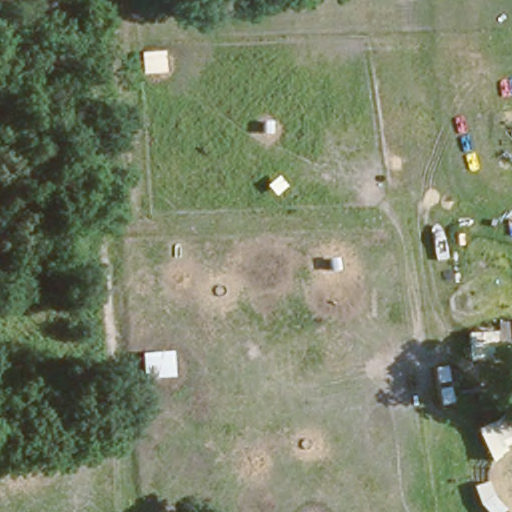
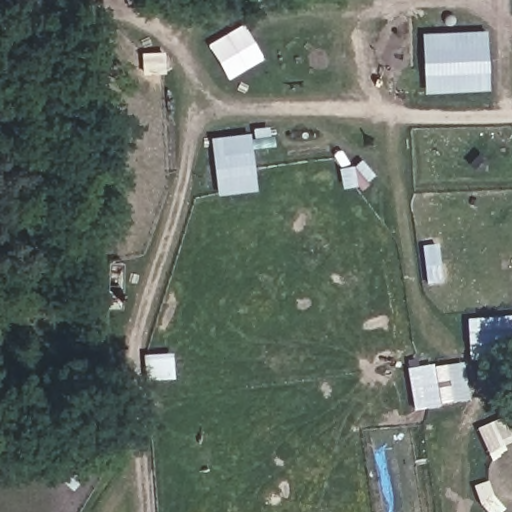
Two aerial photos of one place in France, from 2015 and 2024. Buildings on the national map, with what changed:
new [(256,63),(228,80),(208,46),(244,25),(262,55),(256,63)]
new [(488,34),(491,90),(427,92),(423,35),(488,34)]
new [(252,133),(259,186),(221,192),(214,139),(252,133)]
new [(512,357),(471,361),(465,321),(512,318),(512,357)]
new [(407,371),(463,364),(467,403),(412,410),(407,371)]

